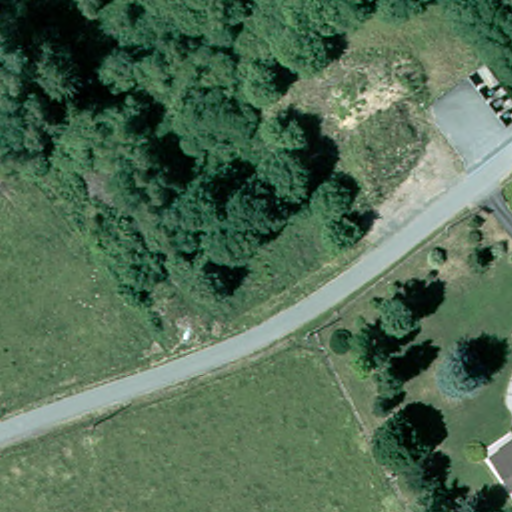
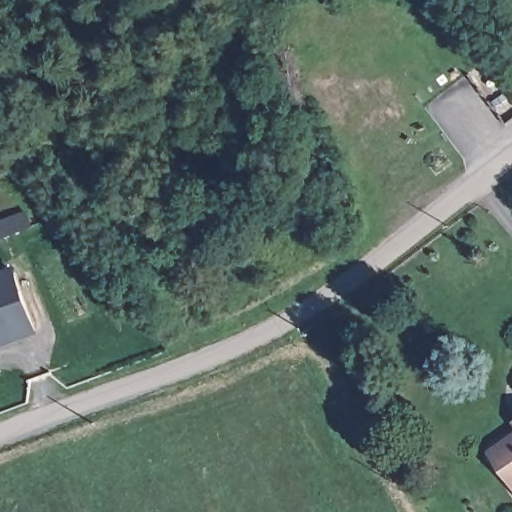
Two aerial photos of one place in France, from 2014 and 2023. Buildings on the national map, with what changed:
new [(0,240),(0,221),(28,211),(34,228),(0,240)]
new [(37,335),(0,348),(0,271),(17,266),(37,335)]
unchanged [(499,456),(512,447),(512,475),(499,456)]

